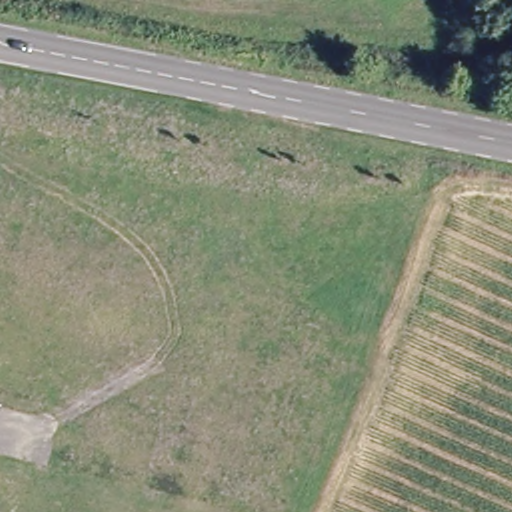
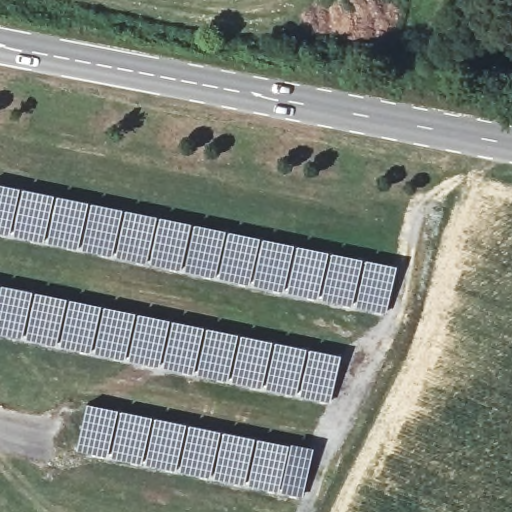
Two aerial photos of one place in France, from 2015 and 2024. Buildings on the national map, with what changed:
new [(8,237),(0,236),(0,188),(16,190),(8,237)]
new [(19,194),(50,199),(42,245),(11,239),(19,194)]
new [(54,200),(85,205),(77,251),(46,246),(54,200)]
new [(88,206),(118,211),(110,257),(80,252),(88,206)]
new [(122,213),(153,219),(145,265),(115,259),(122,213)]
new [(157,221),(188,226),(180,272),(149,266),(157,221)]
new [(192,229),(222,234),(214,280),(184,274),(192,229)]
new [(226,235),(257,240),(249,285),(218,280),(226,235)]
new [(259,242),(289,248),(281,293),(251,288),(259,242)]
new [(294,250),(325,255),(317,301),(286,295),(294,250)]
new [(329,256),(359,261),(351,307),(321,301),(329,256)]
new [(362,262),(391,267),(384,312),(354,308),(362,262)]
new [(20,340),(0,336),(0,289),(28,293),(20,340)]
new [(32,296),(64,301),(57,347),(24,341),(32,296)]
new [(67,303),(98,308),(90,355),(59,350),(67,303)]
new [(102,310),(132,315),(124,361),(94,356),(102,310)]
new [(135,317),(166,322),(158,367),(128,362),(135,317)]
new [(171,324),(201,330),(193,375),(163,370),(171,324)]
new [(205,331),(236,337),(228,382),(197,377),(205,331)]
new [(240,338),(270,343),(262,388),(232,383),(240,338)]
new [(274,345),(304,350),(297,395),(266,390),(274,345)]
new [(307,350),(337,356),(329,401),(299,396),(307,350)]
new [(84,406),(115,411),(107,457),(77,452),(84,406)]
new [(119,413),(149,419),(142,465),(111,459),(119,413)]
new [(152,420),(184,426),(176,471),(145,466),(152,420)]
new [(187,428),(218,433),(210,479),(180,473),(187,428)]
new [(221,435),(252,440),(244,485),(213,480),(221,435)]
new [(256,442),(287,447),(279,493),(248,488),(256,442)]
new [(289,447),(309,450),(301,496),(281,492),(289,447)]

